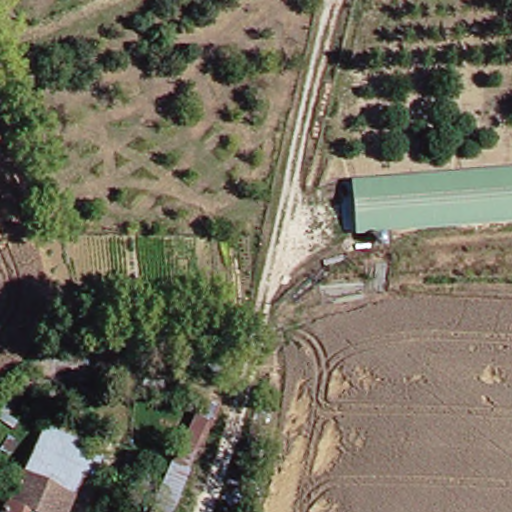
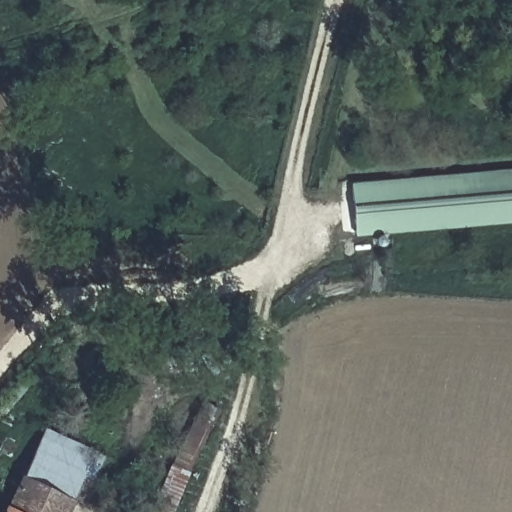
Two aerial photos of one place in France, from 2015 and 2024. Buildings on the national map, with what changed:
unchanged [(512,173),(512,219),(356,232),(352,187),(512,173)]
unchanged [(160,512),(159,512),(182,455),(183,456),(212,392),(226,398),(195,460),(199,462),(178,512),(160,512)]
unchanged [(55,430),(114,458),(102,482),(95,479),(79,512),(15,512),(50,440),(55,430)]
unchanged [(250,512),(231,512),(241,478),(258,485),(250,512)]

